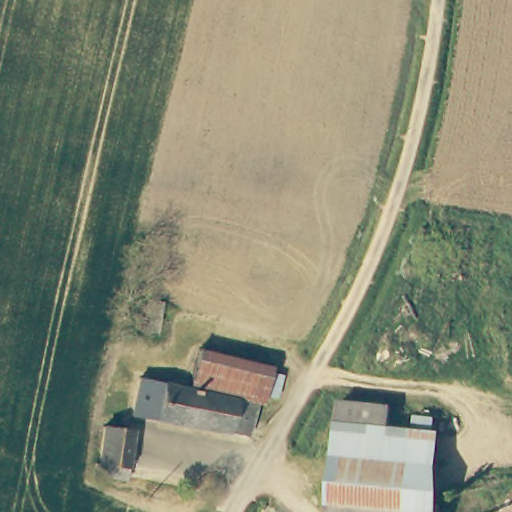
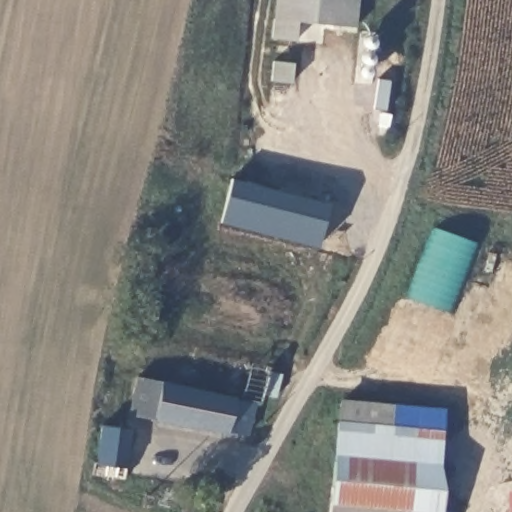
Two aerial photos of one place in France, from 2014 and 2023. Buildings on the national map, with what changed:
new [(356,28),(297,22),(295,41),(270,38),(275,0),(359,0),(356,28)]
new [(374,36),(376,40),(376,45),(373,48),(370,49),(369,52),(374,54),(374,58),(373,63),(371,65),(367,66),(361,63),(360,58),(362,53),(364,51),(364,48),(362,43),(364,38),(366,35),(368,34),(374,36)]
new [(232,179),(329,204),(317,249),(219,223),(232,179)]
unchanged [(141,327),(146,300),(160,302),(154,330),(141,327)]
unchanged [(193,368),(186,366),(189,346),(266,364),(265,369),(282,373),(278,393),(275,396),(265,394),(264,403),(259,402),(204,389),(189,387),(193,368)]
unchanged [(130,413),(136,377),(189,387),(204,389),(259,402),(248,434),(130,413)]
unchanged [(391,425),(443,429),(438,512),(329,512),(338,399),(393,403),(391,425)]
unchanged [(102,426),(130,429),(126,477),(98,474),(102,426)]

